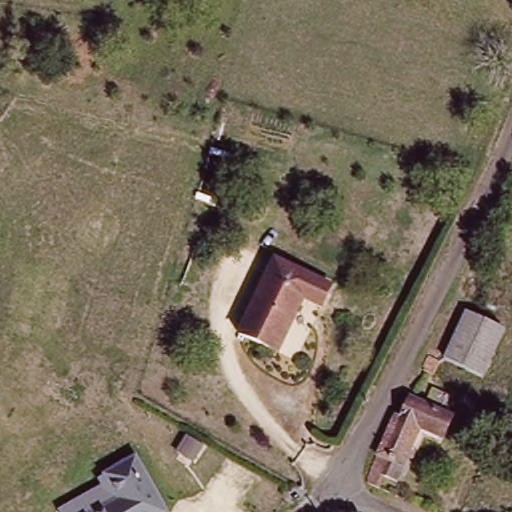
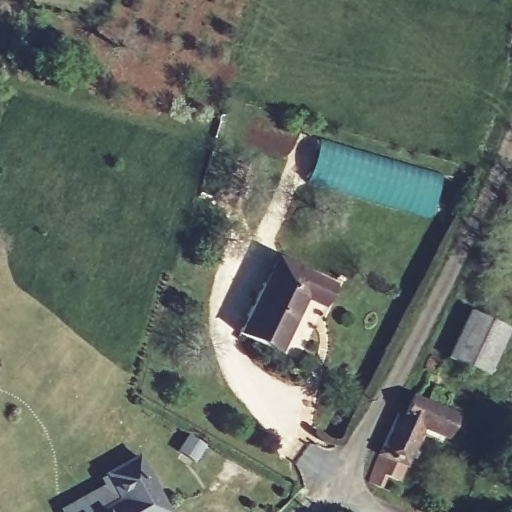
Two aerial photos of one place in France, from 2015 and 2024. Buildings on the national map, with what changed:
new [(442,175),(430,219),(306,184),(318,140),(442,175)]
unchanged [(276,348),(239,330),(275,255),(331,283),(320,304),(301,295),(276,348)]
unchanged [(443,359),(465,314),(500,330),(479,376),(443,359)]
unchanged [(422,371),(427,362),(436,366),(431,376),(422,371)]
unchanged [(441,410),(423,403),(429,389),(435,393),(440,381),(454,388),(441,410)]
unchanged [(491,406),(482,427),(452,413),(462,392),(491,406)]
unchanged [(362,481),(394,414),(400,417),(407,400),(447,419),(440,437),(420,428),(401,464),(388,459),(376,487),(362,481)]
unchanged [(116,499),(102,474),(133,457),(166,512),(93,512),(116,499)]

